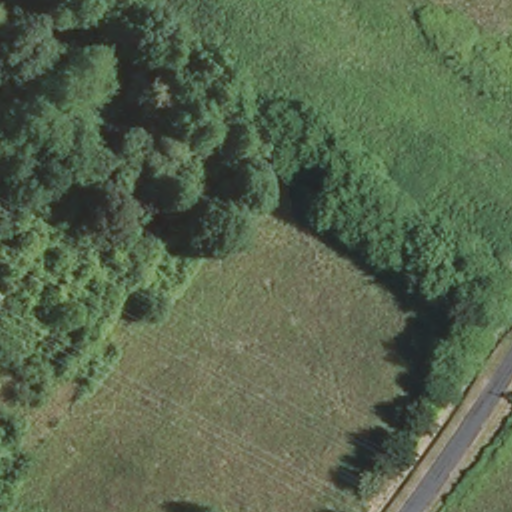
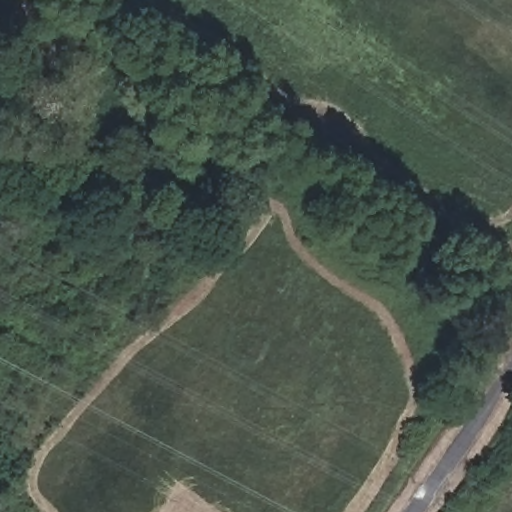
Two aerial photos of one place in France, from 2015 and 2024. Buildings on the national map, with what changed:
[]

